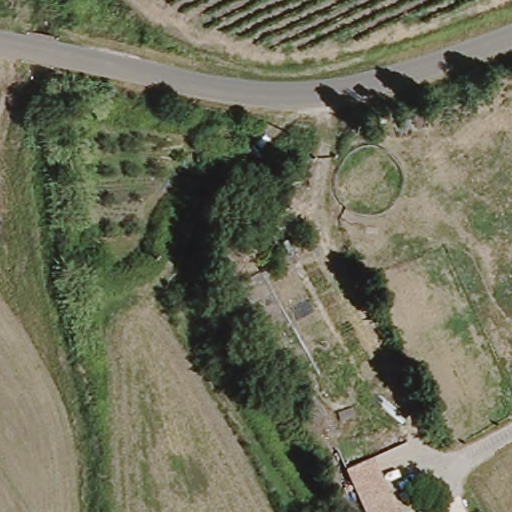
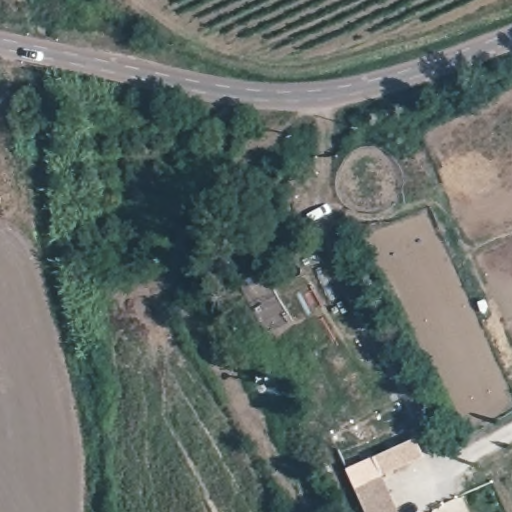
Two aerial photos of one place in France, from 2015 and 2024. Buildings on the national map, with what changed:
unchanged [(272,229),(256,244),(246,233),(262,217),(272,229)]
unchanged [(344,472),(371,461),(394,512),(360,512),(344,472)]

